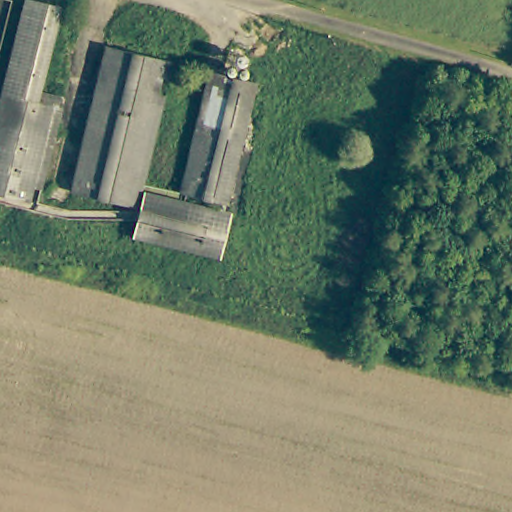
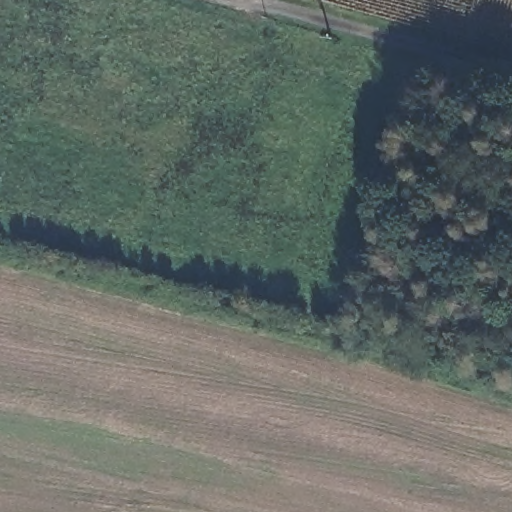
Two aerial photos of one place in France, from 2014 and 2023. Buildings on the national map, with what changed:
demolished [(42,187),(35,185),(29,201),(0,193),(0,105),(30,0),(53,0),(65,4),(43,85),(69,92),(42,187)]
demolished [(64,197),(108,40),(165,56),(125,203),(108,197),(104,210),(64,197)]
demolished [(219,195),(182,184),(215,64),(253,75),(219,195)]
demolished [(212,254),(125,230),(136,190),(224,214),(212,254)]

